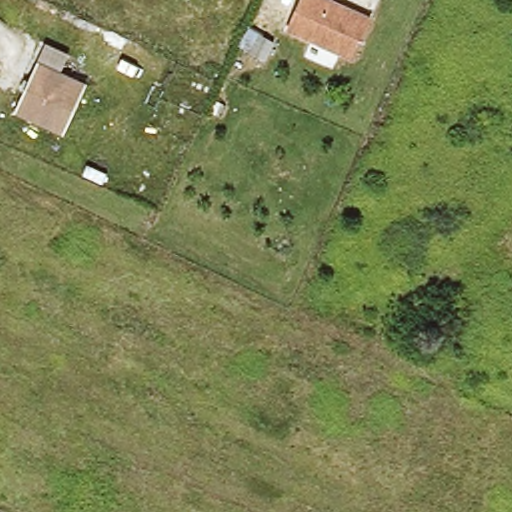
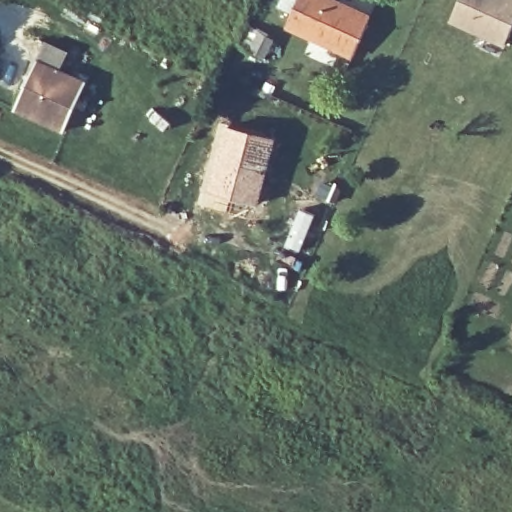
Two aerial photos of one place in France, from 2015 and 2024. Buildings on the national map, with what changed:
unchanged [(296,0),(331,0),(368,16),(351,54),(285,24),(296,0)]
new [(462,0),(512,0),(512,29),(505,44),(453,21),(462,0)]
new [(252,24),(276,38),(264,61),(239,46),(252,24)]
unchanged [(65,134),(15,111),(39,59),(47,40),(70,50),(61,69),(88,81),(65,134)]
new [(220,120),(278,136),(258,207),(202,190),(220,120)]
new [(300,207),(316,214),(300,252),(284,245),(300,207)]

